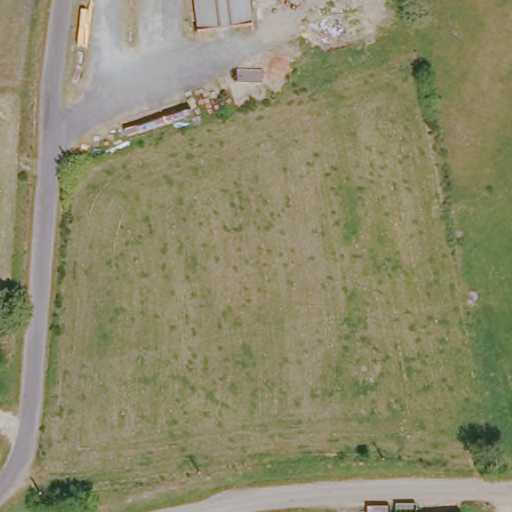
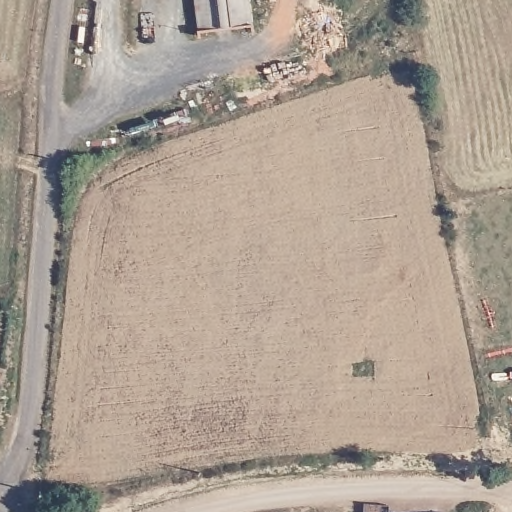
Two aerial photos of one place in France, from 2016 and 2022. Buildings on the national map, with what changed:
unchanged [(197,30),(194,0),(252,0),(254,24),(197,30)]

